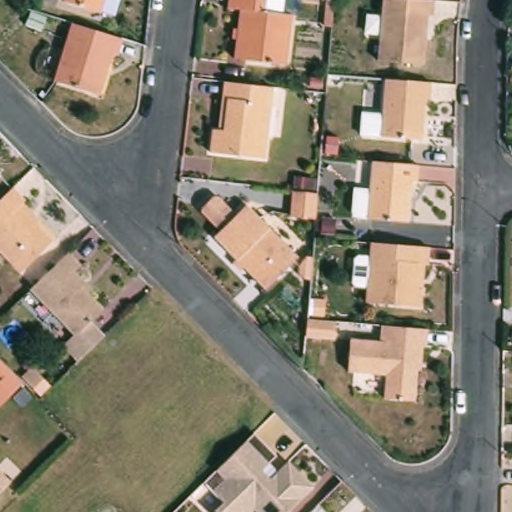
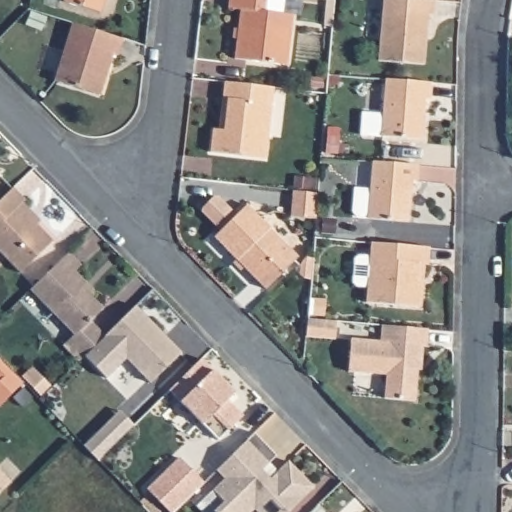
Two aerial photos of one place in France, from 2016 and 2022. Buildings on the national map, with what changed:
unchanged [(101,17),(64,5),(66,0),(106,0),(101,17)]
unchanged [(289,67),(238,61),(244,11),(232,10),(233,0),(289,0),(286,19),(295,20),(289,67)]
unchanged [(382,59),(388,0),(439,0),(437,15),(432,14),(428,63),(382,59)]
unchanged [(118,54),(112,53),(101,95),(58,83),(74,25),(82,28),(92,30),(121,39),(118,54)]
unchanged [(434,98),(429,98),(425,139),(384,135),(364,133),(366,112),(386,114),(389,78),(435,82),(434,98)]
unchanged [(195,84),(216,86),(214,97),(194,94),(195,84)]
unchanged [(268,160),(212,153),(214,130),(225,131),(229,101),(223,100),(225,84),(276,91),(268,160)]
unchanged [(327,141),(338,142),(336,157),(326,157),(327,141)]
unchanged [(371,218),(376,160),(422,164),(421,181),(415,180),(412,221),(371,218)]
unchanged [(24,199),(17,205),(52,242),(19,274),(0,253),(0,201),(13,188),(24,199)]
unchanged [(215,239),(221,232),(202,213),(202,210),(218,194),(222,195),(240,214),(246,207),(297,261),(266,292),(215,239)]
unchanged [(292,223),(294,195),(318,198),(316,225),(292,223)]
unchanged [(323,224),(335,225),(334,239),(322,238),(323,224)]
unchanged [(428,247),(427,264),(418,264),(416,288),(421,289),(420,307),(366,302),(371,243),(428,247)]
unchanged [(95,343),(78,360),(64,346),(73,334),(29,290),(67,252),(79,265),(73,269),(85,282),(80,286),(102,308),(89,321),(103,335),(95,343)]
unchanged [(301,282),(297,278),(298,272),(307,263),(313,264),(313,265),(311,283),(301,282)]
unchanged [(313,320),(315,304),(325,305),(324,321),(313,320)]
new [(126,357),(105,378),(83,355),(95,343),(103,335),(136,305),(181,353),(149,382),(126,357)]
new [(308,324),(337,327),(335,344),(307,342),(308,324)]
unchanged [(425,346),(416,345),(415,368),(417,369),(414,400),(384,398),(386,374),(348,371),(351,339),(380,342),(381,325),(426,329),(425,346)]
new [(201,361),(234,394),(227,401),(242,417),(218,442),(169,393),(201,361)]
unchanged [(21,386),(0,408),(0,364),(21,386)]
new [(117,415),(132,430),(110,451),(96,465),(82,451),(96,436),(117,415)]
unchanged [(210,491),(224,478),(215,469),(254,433),(275,456),(269,463),(278,472),(288,462),(311,486),(285,512),(255,512),(253,509),(250,512),(210,512),(221,500),(210,491)]
new [(203,484),(175,512),(168,512),(147,491),(179,459),(203,484)]
unchanged [(0,499),(0,472),(13,485),(0,499)]
unchanged [(342,512),(339,512),(340,510),(342,512)]

